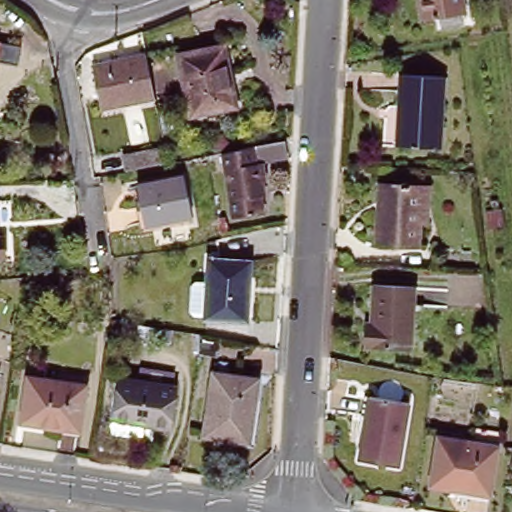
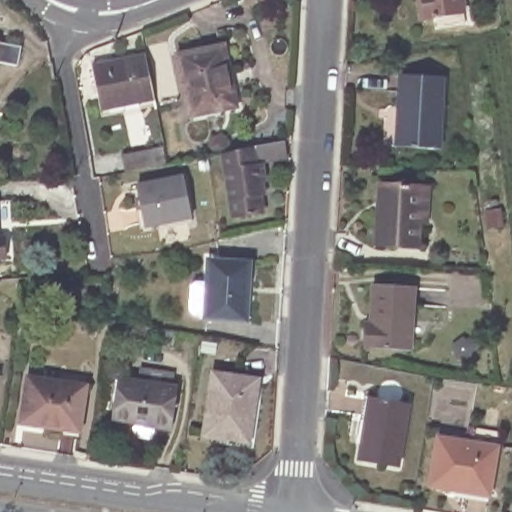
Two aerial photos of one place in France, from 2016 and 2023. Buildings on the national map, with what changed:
unchanged [(461,9),(420,15),(417,0),(460,0),(461,9)]
unchanged [(501,5),(500,0),(512,0),(512,3),(501,5)]
unchanged [(18,45),(15,63),(0,61),(0,42),(18,45)]
unchanged [(223,45),(233,105),(188,113),(179,53),(223,45)]
unchanged [(145,54),(153,104),(99,113),(92,64),(145,54)]
unchanged [(445,77),(439,153),(416,151),(399,150),(402,110),(397,110),(400,73),(404,73),(445,77)]
unchanged [(162,147),(164,163),(125,171),(122,155),(162,147)]
unchanged [(255,148),(259,167),(264,166),(269,185),(263,186),(266,197),(260,199),(263,213),(234,220),(219,156),(255,148)]
unchanged [(181,181),(189,221),(143,231),(135,190),(181,181)]
unchanged [(427,188),(423,249),(377,247),(382,186),(427,188)]
unchanged [(4,237),(7,259),(0,260),(0,238),(4,237)]
unchanged [(253,265),(250,320),(208,318),(208,312),(192,312),(187,309),(189,282),(193,277),(209,277),(210,263),(253,265)]
unchanged [(412,352),(368,348),(374,286),(418,290),(412,352)]
unchanged [(258,381),(249,437),(230,434),(229,439),(204,436),(214,373),(258,381)]
unchanged [(89,383),(81,429),(22,420),(29,374),(89,383)]
unchanged [(177,387),(170,425),(152,423),(150,437),(109,430),(119,376),(177,387)]
unchanged [(407,406),(397,469),(358,462),(368,398),(407,406)]
unchanged [(498,448),(489,498),(431,489),(440,438),(498,448)]

